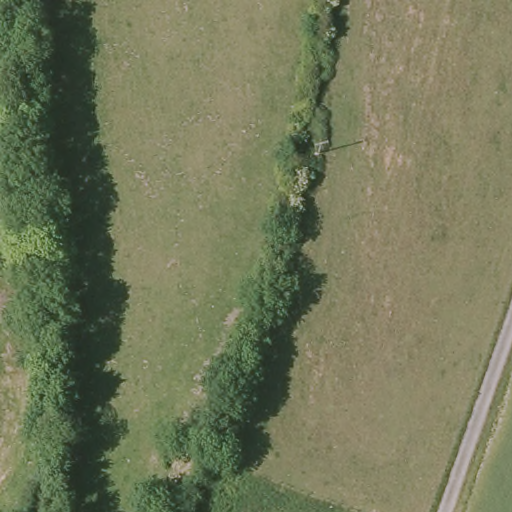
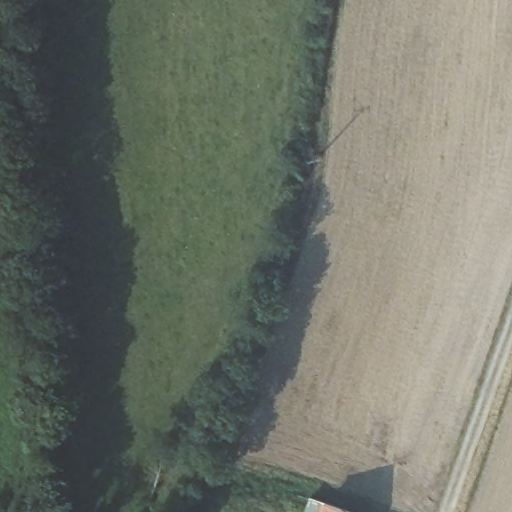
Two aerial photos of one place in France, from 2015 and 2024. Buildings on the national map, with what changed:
new [(310,497),(324,501),(353,512),(305,512),(310,497)]

